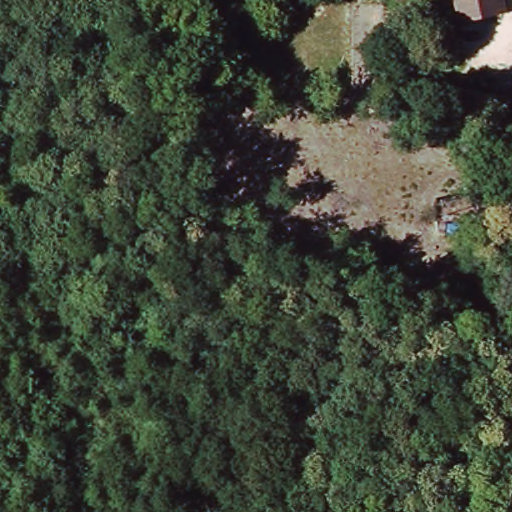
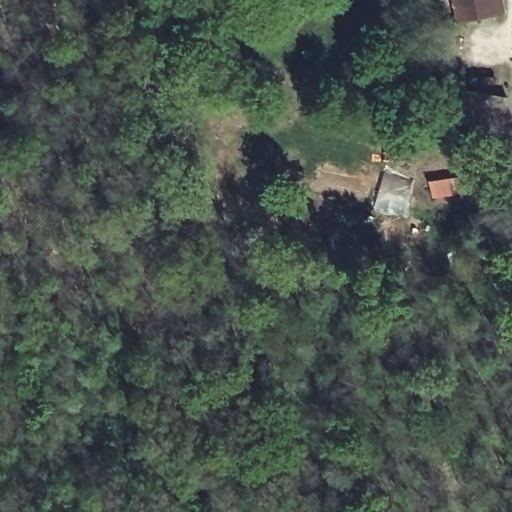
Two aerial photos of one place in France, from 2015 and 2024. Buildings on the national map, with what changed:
unchanged [(468,28),(465,13),(462,0),(505,0),(506,2),(510,17),(468,28)]
unchanged [(438,101),(465,104),(468,92),(512,99),(512,113),(507,137),(433,126),(438,101)]

